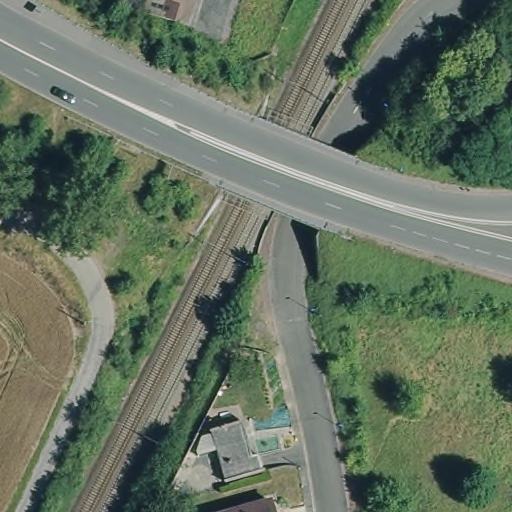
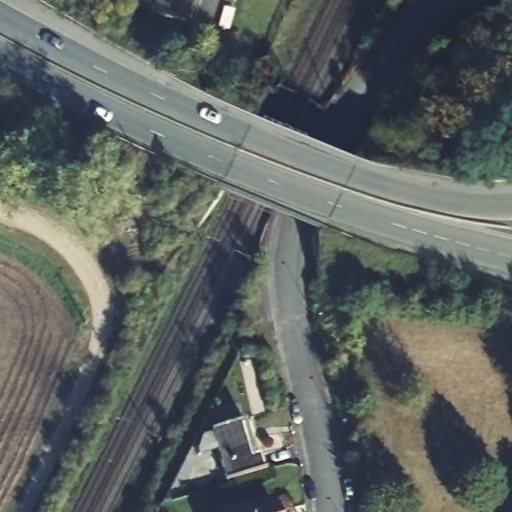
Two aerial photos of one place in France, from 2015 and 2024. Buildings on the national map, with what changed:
unchanged [(190,1),(188,0),(181,23),(139,10),(143,0),(190,0),(190,1)]
unchanged [(237,414),(248,448),(253,447),(258,464),(222,475),(206,424),(237,414)]
unchanged [(269,493),(275,512),(208,512),(208,510),(269,493)]

